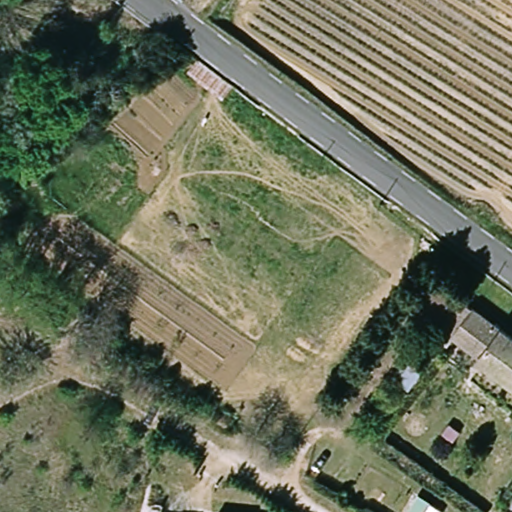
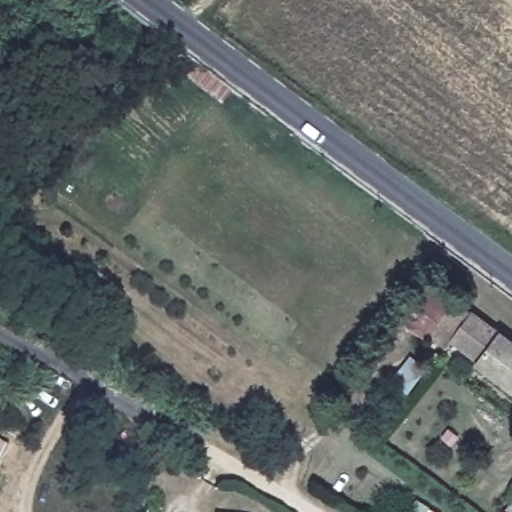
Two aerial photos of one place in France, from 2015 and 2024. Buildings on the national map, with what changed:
unchanged [(481,365),(479,360),(458,342),(451,350),(436,336),(460,303),(477,316),(512,344),(512,389),(481,365)]

